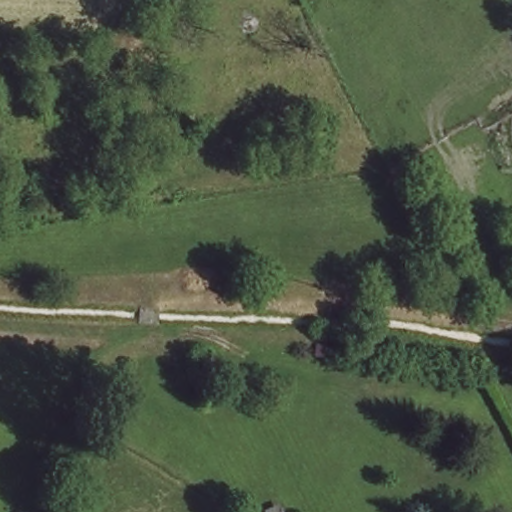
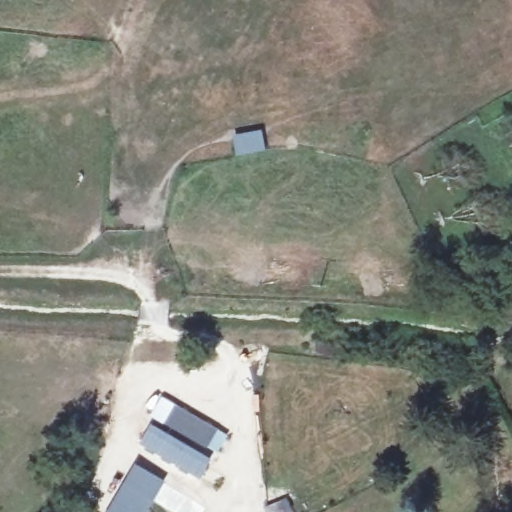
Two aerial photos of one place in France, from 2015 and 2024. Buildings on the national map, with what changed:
new [(161,396),(218,430),(207,448),(151,415),(161,396)]
new [(210,460),(199,477),(139,445),(150,425),(210,460)]
new [(147,512),(107,512),(134,463),(165,481),(147,512)]

